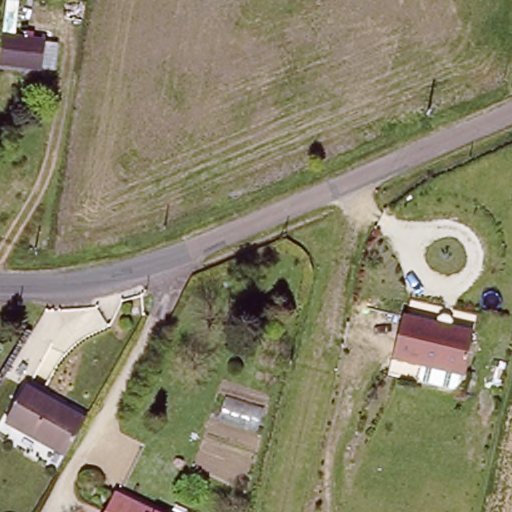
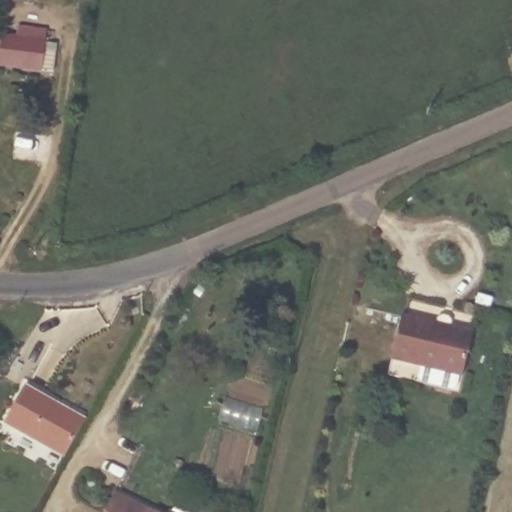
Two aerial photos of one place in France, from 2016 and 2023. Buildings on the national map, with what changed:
unchanged [(25,40),(26,33),(32,33),(32,41),(43,41),(41,69),(1,67),(3,39),(25,40)]
unchanged [(395,350),(405,309),(476,326),(466,367),(462,384),(391,367),(395,350)]
unchanged [(46,450),(5,426),(26,388),(85,422),(66,455),(64,460),(46,450)]
unchanged [(118,493),(157,512),(109,512),(118,493)]

